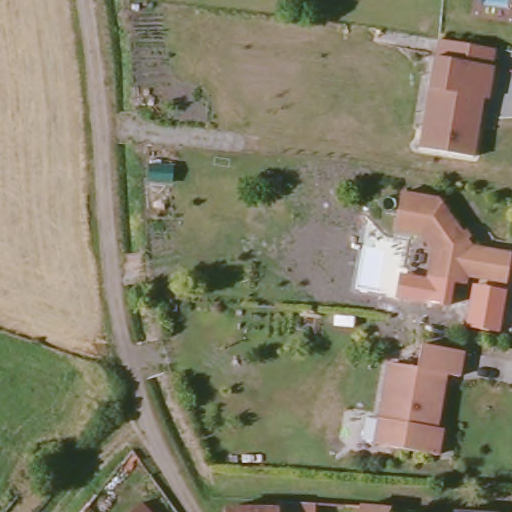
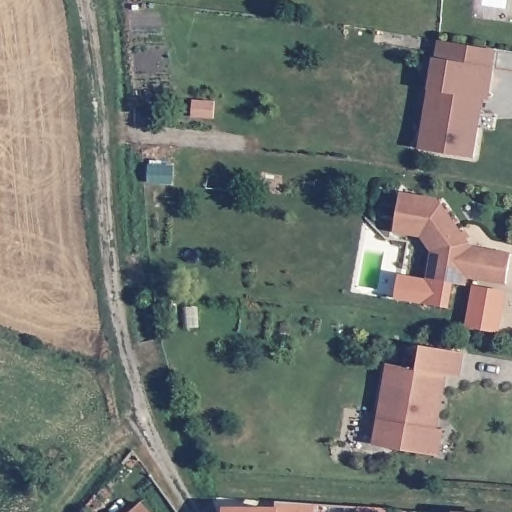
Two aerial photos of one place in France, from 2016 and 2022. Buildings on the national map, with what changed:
unchanged [(435,57),(491,67),(475,159),(420,151),(435,57)]
unchanged [(157,169),(157,184),(132,183),(133,168),(157,169)]
unchanged [(417,235),(408,232),(389,230),(395,192),(433,199),(466,242),(505,248),(501,276),(461,270),(460,279),(422,273),(425,254),(426,247),(417,235)]
unchanged [(450,307),(395,298),(400,275),(425,278),(425,273),(455,278),(450,307)]
unchanged [(465,326),(472,286),(506,291),(500,333),(465,326)]
unchanged [(377,417),(387,361),(415,366),(419,342),(452,347),(448,372),(430,370),(420,423),(440,427),(435,453),(382,443),(372,442),(377,417)]
unchanged [(465,350),(461,378),(448,377),(440,427),(420,423),(430,370),(448,372),(452,347),(465,350)]
unchanged [(277,510),(277,502),(315,505),(314,512),(225,512),(225,508),(277,510)]
unchanged [(385,505),(381,512),(348,512),(353,502),(385,505)]
unchanged [(147,512),(130,512),(139,503),(147,512)]

